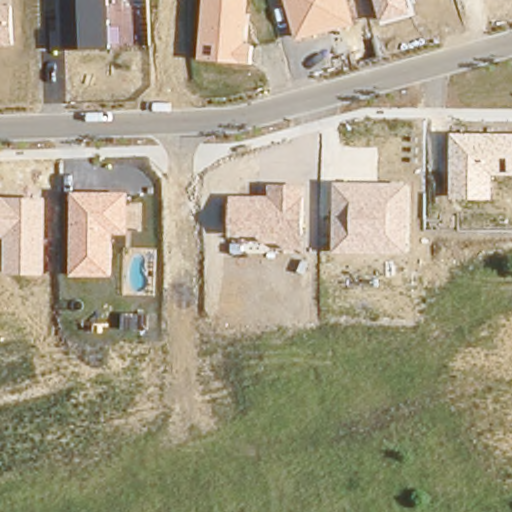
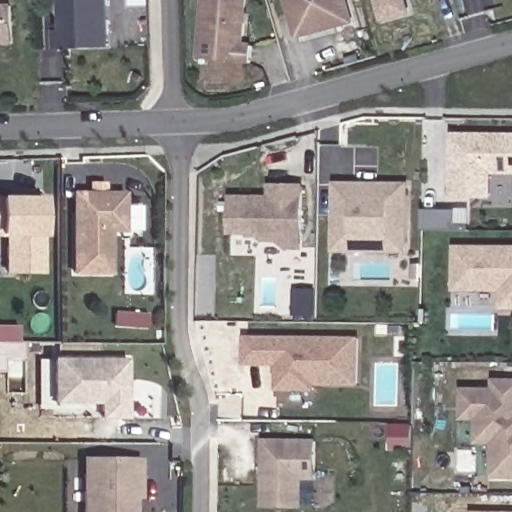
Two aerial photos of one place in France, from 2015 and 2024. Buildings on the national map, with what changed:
unchanged [(111,47),(56,50),(55,29),(62,28),(61,0),(108,0),(111,47)]
unchanged [(253,44),(252,64),(199,60),(203,0),(248,0),(246,44),(253,44)]
unchanged [(285,0),(348,0),(355,25),(296,40),(285,0)]
unchanged [(381,22),(375,0),(406,0),(410,14),(381,22)]
unchanged [(12,5),(16,45),(0,45),(0,6),(12,5)]
unchanged [(492,199),(451,199),(452,134),(512,134),(512,175),(492,175),(492,199)]
unchanged [(409,252),(334,252),(335,183),(410,184),(409,252)]
unchanged [(304,251),(287,250),(279,242),(264,242),(258,236),(231,236),(231,196),(269,196),(269,185),(306,184),(304,251)]
unchanged [(114,232),(114,276),(72,276),(73,192),(129,192),(129,233),(114,232)]
unchanged [(5,273),(6,237),(0,237),(0,197),(47,197),(46,274),(5,273)]
new [(501,293),(455,292),(456,245),(512,246),(512,310),(501,311),(501,293)]
new [(358,386),(315,386),(314,391),(277,391),(277,367),(244,367),(244,336),(358,337),(358,386)]
new [(97,420),(97,406),(51,405),(51,358),(128,359),(127,420),(97,420)]
new [(493,446),(477,445),(477,422),(462,422),(463,387),(493,387),(493,378),(512,379),(512,478),(493,478),(493,446)]
new [(390,423),(413,423),(413,450),(390,450),(390,423)]
new [(317,440),(316,482),(304,482),(303,508),(263,508),(263,438),(317,440)]
new [(144,457),(142,499),(138,499),(138,512),(80,512),(82,457),(144,457)]
new [(512,512),(474,512),(474,511),(512,512)]

